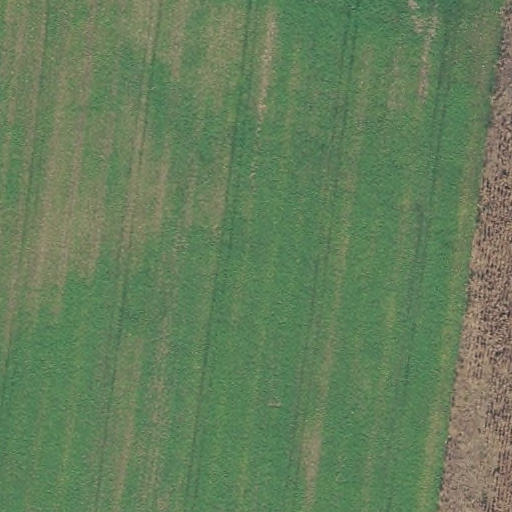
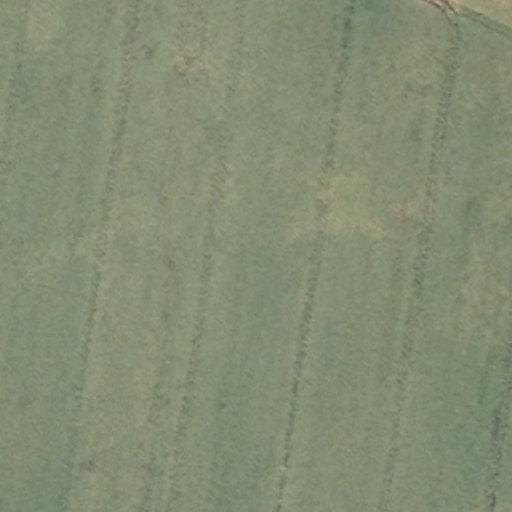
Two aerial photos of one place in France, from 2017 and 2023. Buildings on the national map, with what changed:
[]

